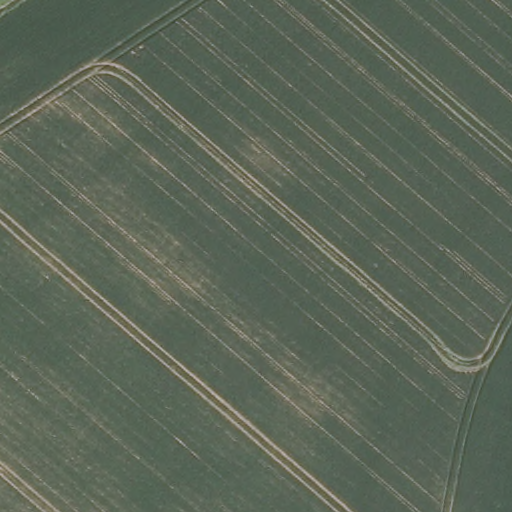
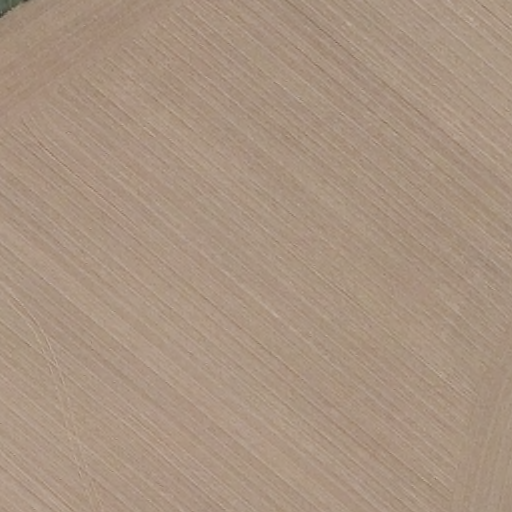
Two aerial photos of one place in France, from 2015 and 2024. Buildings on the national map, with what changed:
[]

